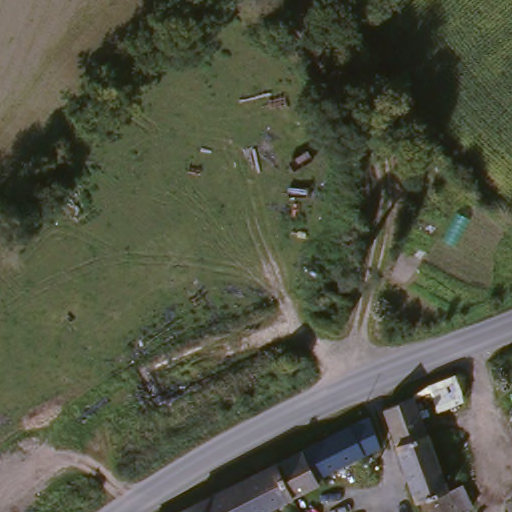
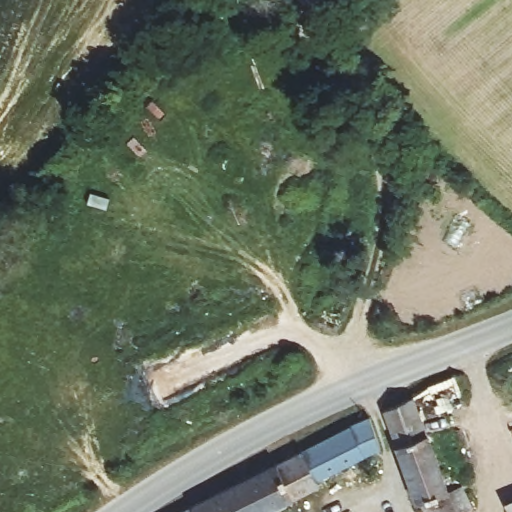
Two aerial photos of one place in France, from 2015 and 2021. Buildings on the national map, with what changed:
unchanged [(334,331),(311,321),(311,320),(326,290),(339,297),(342,298),(348,301),(334,331)]
unchanged [(303,359),(310,372),(296,379),(289,383),(288,382),(278,365),(298,354),(299,353),(303,359)]
unchanged [(411,394),(454,376),(462,399),(420,418),(413,397),(411,394)]
unchanged [(473,507),(467,512),(424,512),(420,502),(416,503),(383,410),(413,397),(420,418),(448,492),(463,487),(473,507)]
unchanged [(369,417),(379,448),(315,480),(318,485),(293,498),(276,464),(369,417)]
unchanged [(276,464),(293,498),(290,499),(265,512),(182,512),(276,464)]
unchanged [(512,512),(509,506),(512,505),(512,512)]

